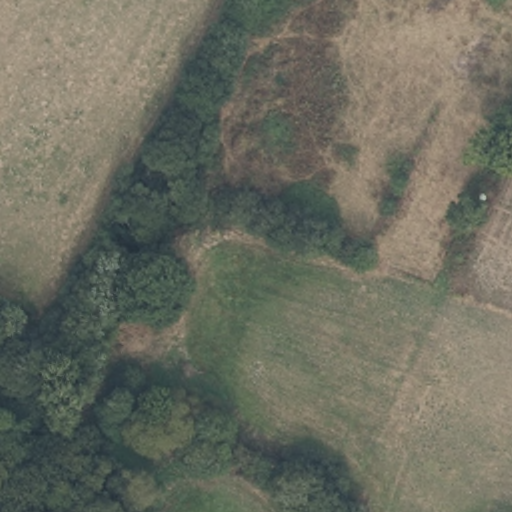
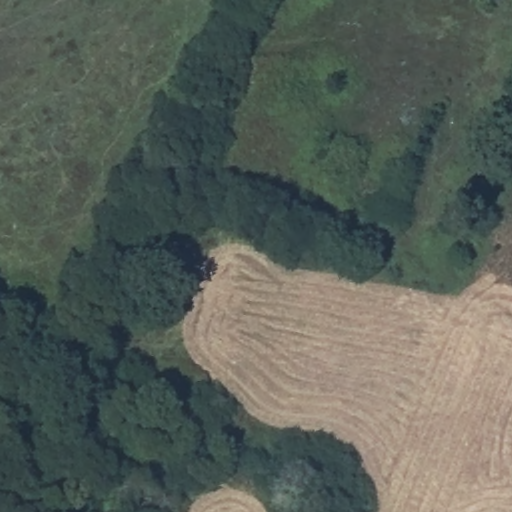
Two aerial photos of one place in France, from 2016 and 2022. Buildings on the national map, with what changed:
[]

